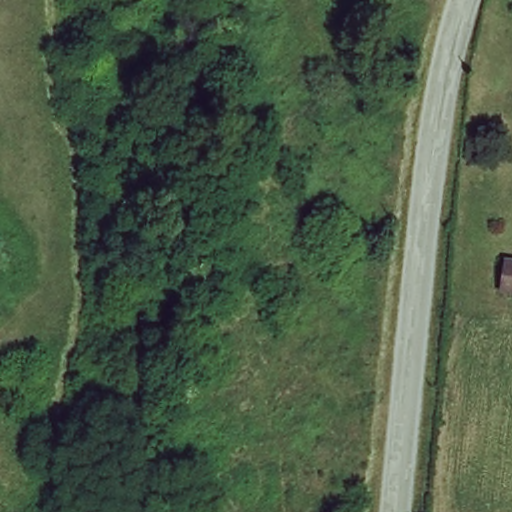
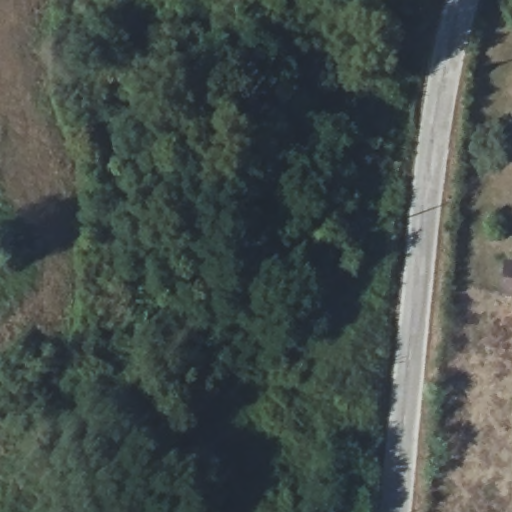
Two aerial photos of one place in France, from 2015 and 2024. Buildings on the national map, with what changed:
unchanged [(512,262),(512,293),(502,291),(506,261),(512,262)]

